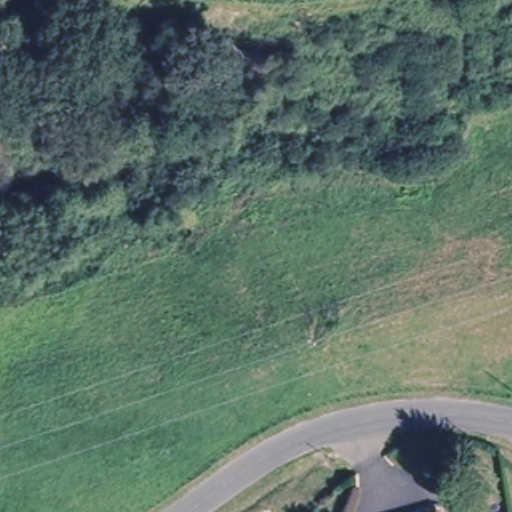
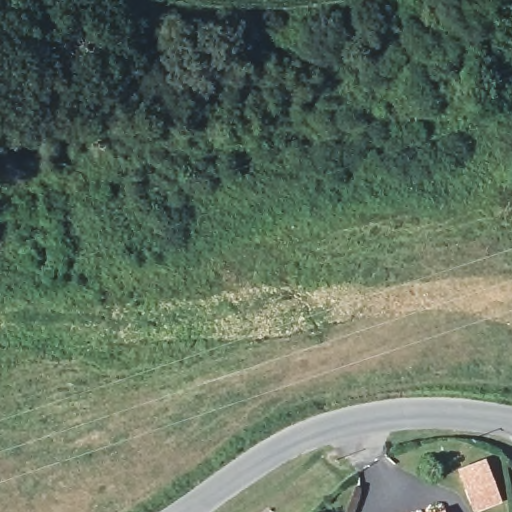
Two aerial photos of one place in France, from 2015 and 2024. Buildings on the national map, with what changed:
new [(502,502),(476,512),(457,469),(485,458),(502,502)]

